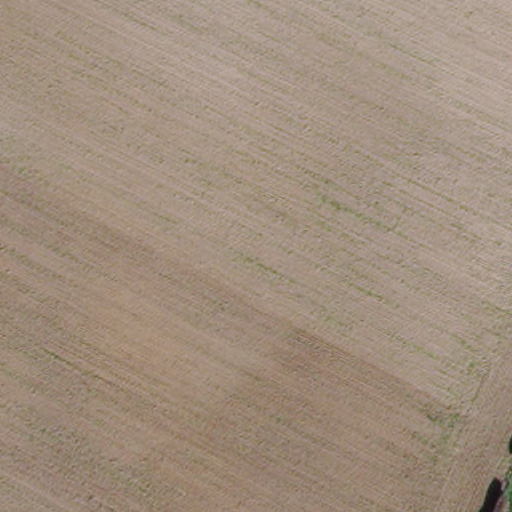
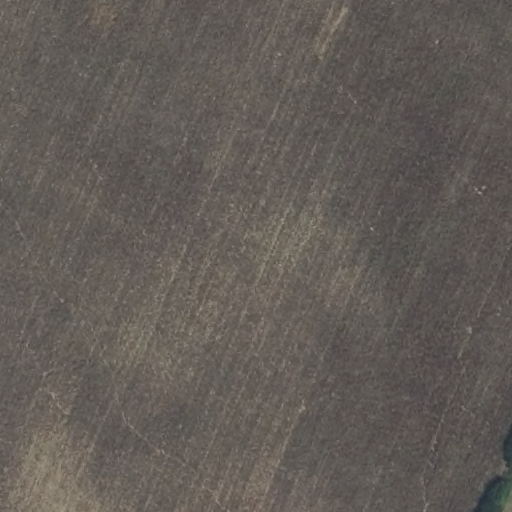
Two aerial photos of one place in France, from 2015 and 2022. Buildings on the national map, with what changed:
[]

